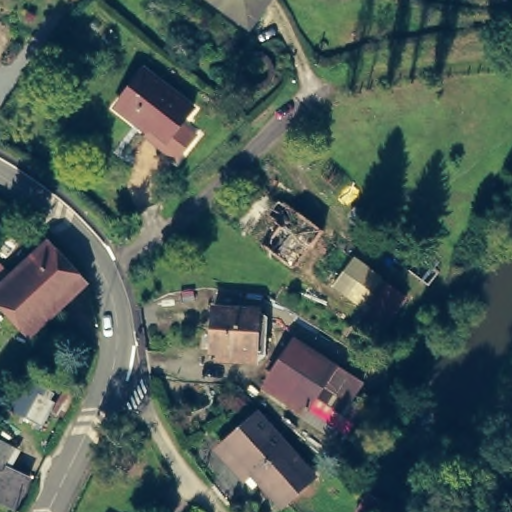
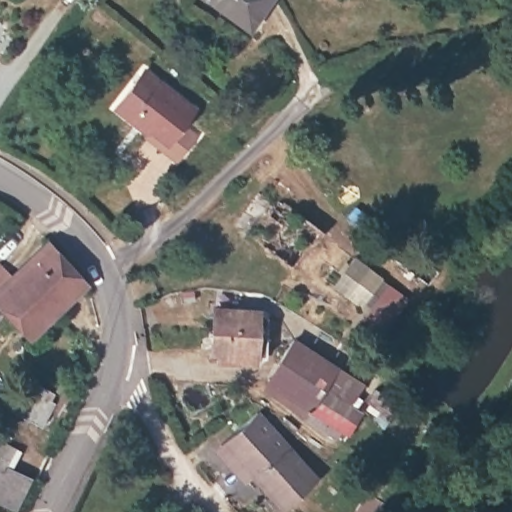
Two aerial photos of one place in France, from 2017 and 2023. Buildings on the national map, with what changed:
unchanged [(219,0),(267,0),(250,22),(219,0)]
unchanged [(194,99),(162,139),(147,127),(152,120),(137,109),(135,112),(116,98),(145,61),(194,99)]
unchanged [(263,181),(324,226),(295,266),(235,221),(263,181)]
unchanged [(25,332),(10,316),(7,318),(6,316),(8,314),(0,306),(0,279),(45,237),(83,278),(25,332)]
unchanged [(384,280),(402,293),(379,326),(360,312),(384,280)]
unchanged [(262,307),(260,346),(252,345),(251,353),(213,351),(214,343),(206,342),(209,298),(254,301),(262,307)]
unchanged [(289,335),(357,380),(345,398),(356,406),(341,428),(304,404),(302,406),(301,405),(302,403),(262,377),(289,335)]
unchanged [(44,397),(48,389),(55,393),(52,400),(55,402),(42,427),(26,418),(40,394),(44,397)]
unchanged [(282,497),(259,472),(255,476),(247,470),(253,466),(223,433),(257,403),(315,467),(282,497)]
unchanged [(0,443),(17,451),(5,475),(32,486),(20,512),(12,512),(0,506),(0,443)]

